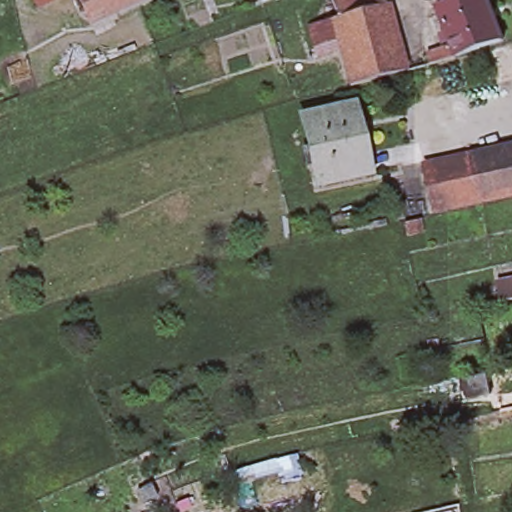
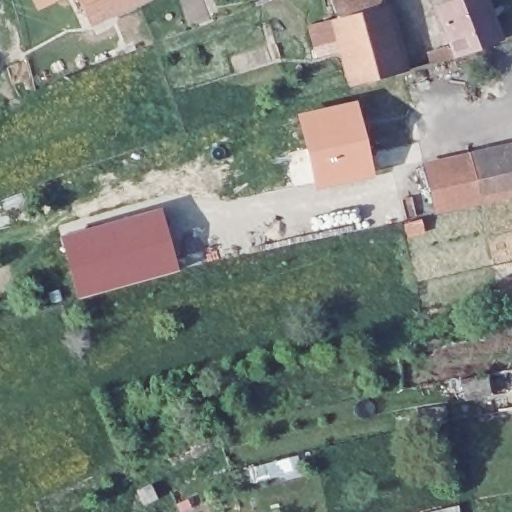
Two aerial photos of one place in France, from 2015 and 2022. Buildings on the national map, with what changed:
unchanged [(80,0),(149,0),(152,6),(96,32),(80,0)]
unchanged [(388,0),(389,5),(341,17),(336,0),(388,0)]
unchanged [(451,47),(435,5),(447,0),(487,0),(502,40),(455,57),(430,65),(427,53),(451,47)]
unchanged [(407,66),(413,65),(415,71),(407,72),(355,86),(346,49),(324,55),(316,23),(337,17),(338,19),(341,17),(389,5),(390,4),(407,66)]
unchanged [(362,143),(355,145),(362,172),(319,182),(303,117),(353,105),(362,143)]
unchanged [(424,170),(512,150),(512,201),(435,217),(424,170)]
new [(163,208),(182,272),(79,301),(63,239),(163,208)]
unchanged [(496,286),(512,283),(512,305),(500,307),(496,286)]
demolished [(497,372),(512,369),(512,410),(503,411),(497,372)]
unchanged [(495,395),(469,400),(465,380),(491,373),(495,395)]
new [(512,486),(485,491),(474,432),(505,427),(512,469),(512,486)]
unchanged [(157,497),(142,503),(136,490),(150,483),(157,497)]

